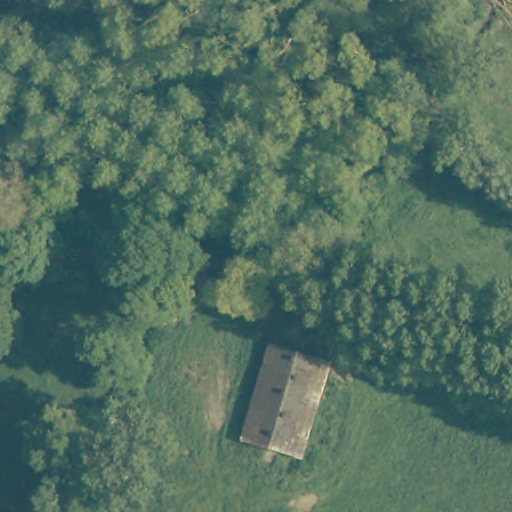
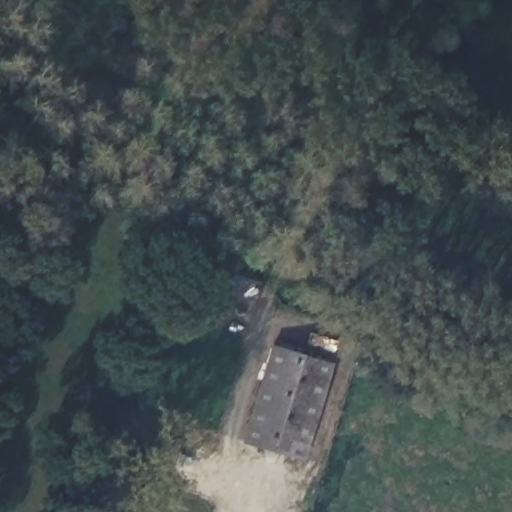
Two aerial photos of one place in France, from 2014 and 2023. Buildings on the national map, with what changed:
unchanged [(335,366),(306,461),(249,442),(277,347),(335,366)]

